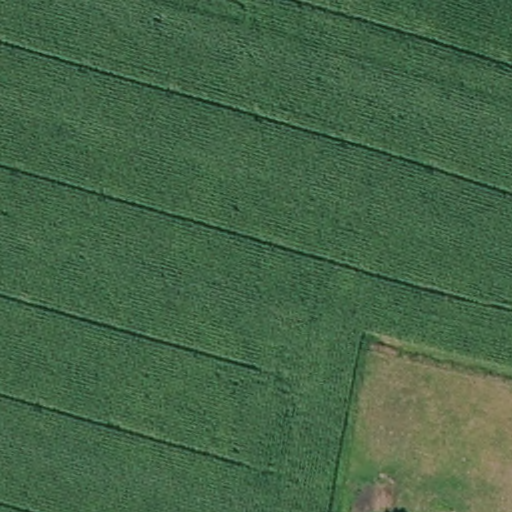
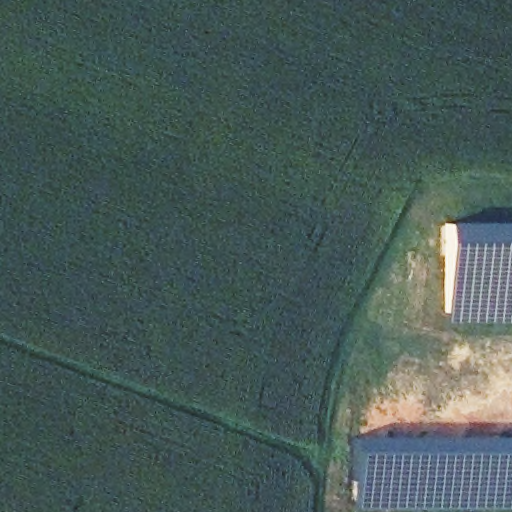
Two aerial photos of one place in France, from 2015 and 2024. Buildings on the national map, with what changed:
new [(447,325),(446,223),(512,223),(512,324),(447,325)]
new [(360,438),(360,442),(364,442),(364,438),(369,440),(369,438),(512,438),(512,508),(353,509),(353,438),(360,438)]

